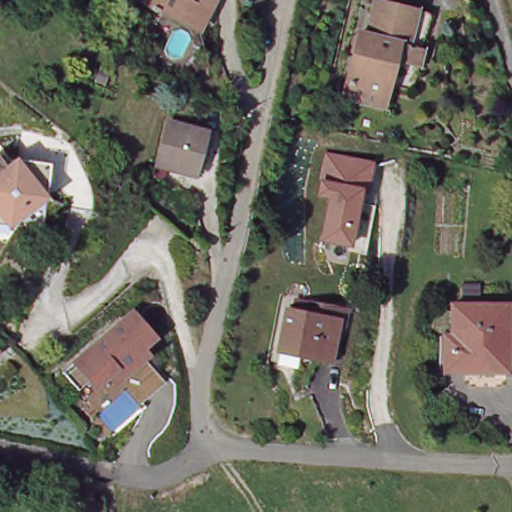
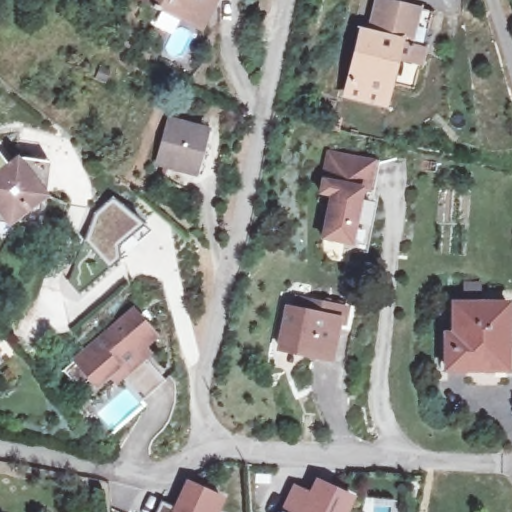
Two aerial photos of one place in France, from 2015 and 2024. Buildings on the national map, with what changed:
unchanged [(189,21),(146,0),(215,0),(209,11),(200,28),(189,21)]
unchanged [(397,53),(391,78),(386,98),(349,88),(364,26),(372,28),(380,0),(405,0),(422,4),(434,7),(425,41),(420,59),(409,56),(397,53)]
unchanged [(159,162),(170,120),(206,130),(195,173),(159,162)]
unchanged [(10,165),(20,159),(52,163),(47,197),(10,225),(0,223),(0,152),(1,151),(10,165)]
unchanged [(376,161),(370,197),(364,196),(355,247),(320,242),(327,205),(317,203),(322,180),(329,153),(376,161)]
new [(149,226),(152,230),(127,256),(108,267),(82,293),(66,277),(78,265),(75,262),(86,246),(90,222),(115,197),(147,229),(149,226)]
unchanged [(132,303),(155,330),(139,344),(145,350),(165,374),(141,396),(128,381),(94,411),(86,401),(92,396),(80,382),(64,365),(132,303)]
unchanged [(499,369),(449,368),(449,347),(449,335),(456,335),(456,303),(509,303),(510,349),(510,369),(499,369)]
unchanged [(275,348),(284,310),(307,314),(309,304),(337,310),(330,344),(327,358),(309,355),(275,348)]
new [(294,484),(309,492),(315,478),(357,496),(349,512),(281,512),(294,484)]
new [(161,502),(174,508),(187,479),(225,498),(218,512),(156,512),(161,502)]

